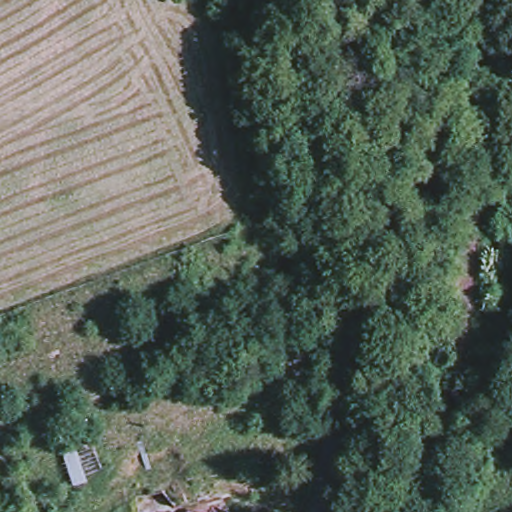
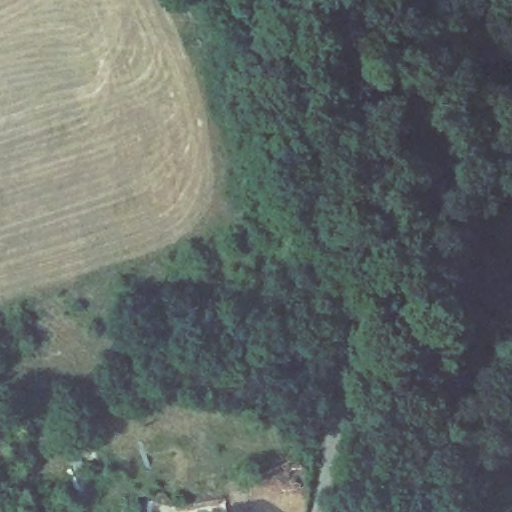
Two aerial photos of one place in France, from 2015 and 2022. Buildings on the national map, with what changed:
unchanged [(155,462),(158,485),(137,487),(133,466),(155,462)]

